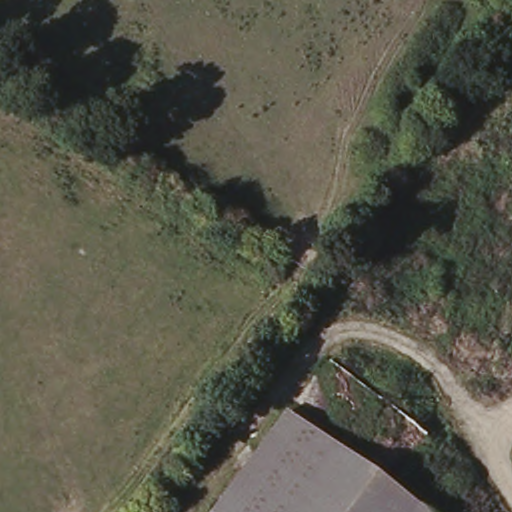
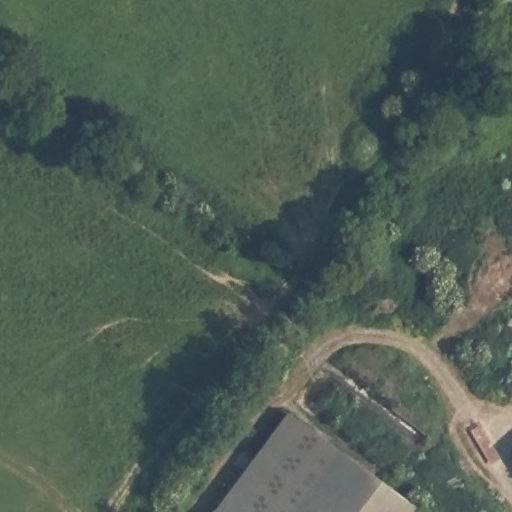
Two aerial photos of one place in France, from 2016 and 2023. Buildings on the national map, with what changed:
unchanged [(209,512),(282,414),(331,450),(286,512),(209,512)]
unchanged [(286,512),(331,450),(414,508),(410,512),(286,512)]
unchanged [(420,512),(410,512),(414,508),(420,512)]

